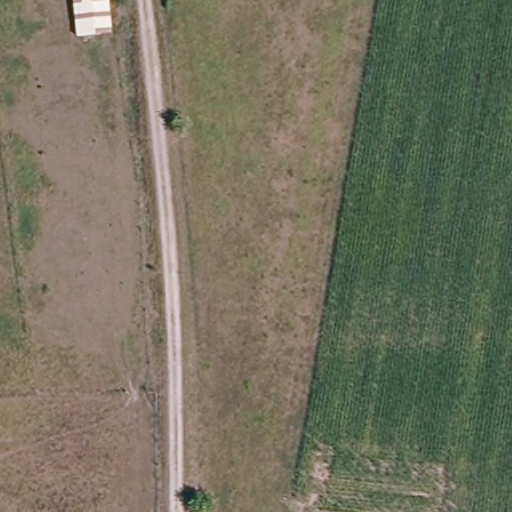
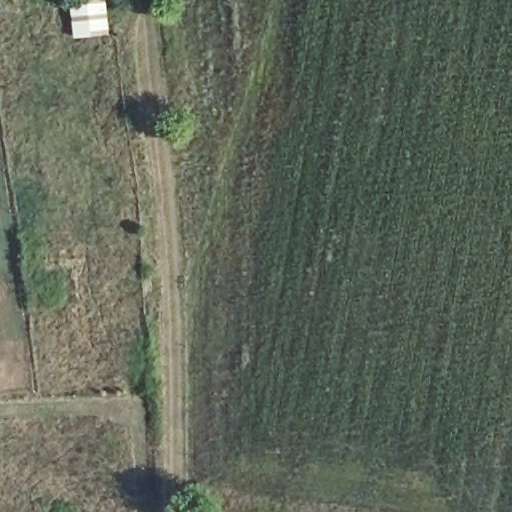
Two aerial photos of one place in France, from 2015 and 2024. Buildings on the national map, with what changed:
unchanged [(76,33),(72,0),(111,0),(116,28),(76,33)]

